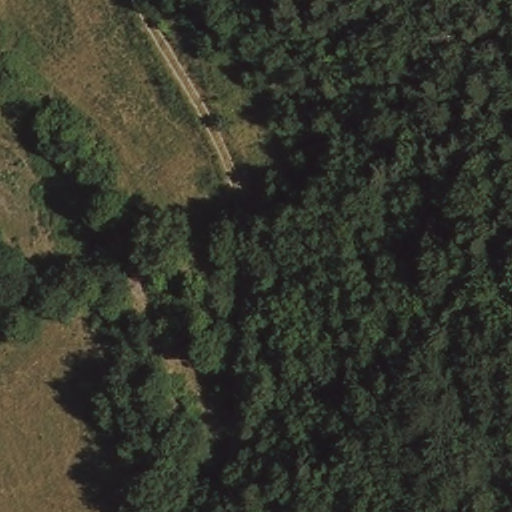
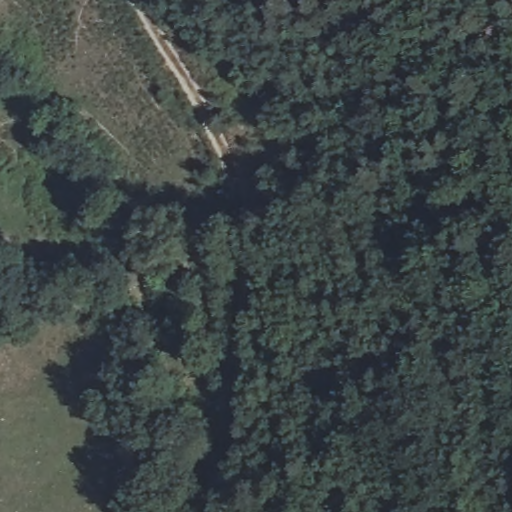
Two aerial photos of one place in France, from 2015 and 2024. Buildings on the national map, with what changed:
unchanged [(129,267),(160,251),(199,322),(166,341),(129,267)]

